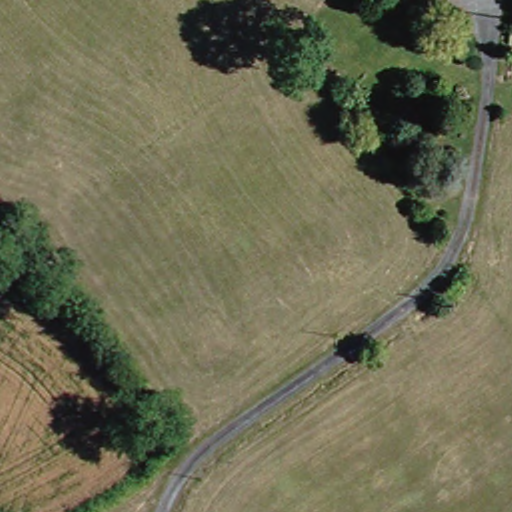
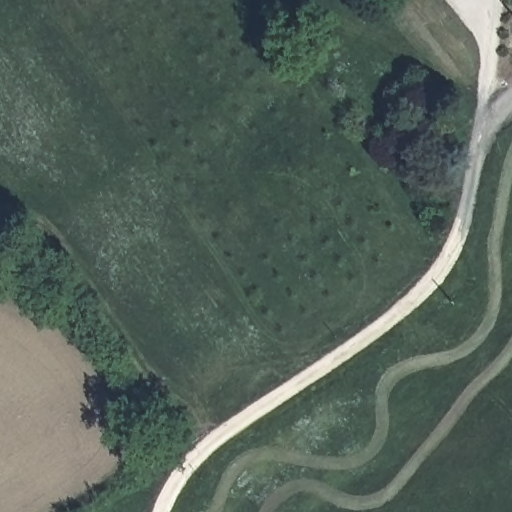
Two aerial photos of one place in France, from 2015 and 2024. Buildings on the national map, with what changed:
[]

